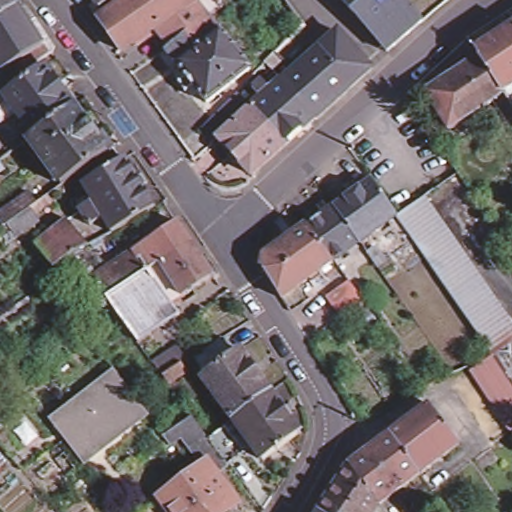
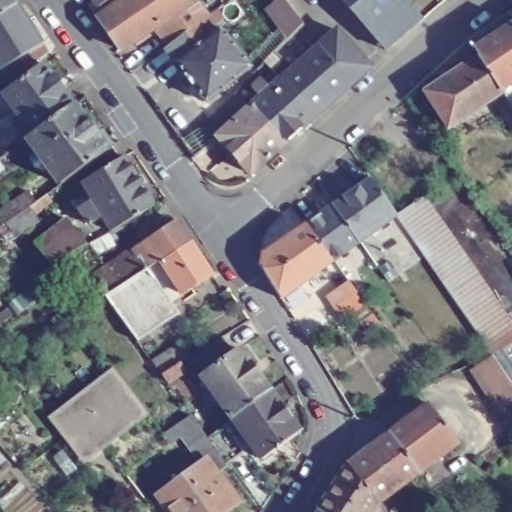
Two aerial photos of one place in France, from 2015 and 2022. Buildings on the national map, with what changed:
unchanged [(0,0),(6,0),(0,3),(0,0)]
unchanged [(0,64),(0,3),(6,0),(12,0),(41,46),(5,72),(0,64)]
unchanged [(96,0),(95,1),(95,0),(96,0)]
unchanged [(115,44),(95,13),(112,0),(180,0),(150,21),(115,44)]
unchanged [(240,75),(198,105),(188,91),(178,97),(169,83),(178,77),(170,66),(157,47),(163,42),(150,21),(180,0),(202,0),(209,11),(219,26),(210,32),(240,75)]
unchanged [(387,49),(360,13),(349,11),(348,11),(340,0),(399,0),(417,23),(387,49)]
unchanged [(282,44),(286,49),(257,78),(249,70),(262,56),(254,47),(276,25),(296,4),(304,13),(293,24),(297,29),(282,44)]
unchanged [(473,53),(470,46),(512,18),(512,110),(473,53)]
unchanged [(249,99),(335,24),(364,65),(308,113),(281,137),(249,99)]
unchanged [(490,99),(442,127),(417,88),(473,53),(512,110),(512,132),(490,99)]
unchanged [(38,57),(68,97),(30,125),(7,91),(0,97),(0,85),(2,84),(38,57)]
unchanged [(212,106),(235,83),(242,91),(220,114),(205,130),(198,121),(212,106)]
unchanged [(83,119),(89,117),(95,124),(92,131),(102,144),(56,178),(23,130),(30,125),(68,97),(83,119)]
unchanged [(245,168),(213,130),(249,99),(281,137),(245,168)]
unchanged [(15,136),(11,139),(0,147),(0,126),(6,122),(15,136)]
unchanged [(113,225),(105,210),(91,217),(80,198),(93,191),(84,175),(127,151),(156,202),(113,225)]
unchanged [(305,226),(311,221),(336,204),(338,203),(375,177),(400,210),(402,213),(397,216),(363,239),(361,241),(337,257),(330,262),(285,293),(263,259),(264,254),(305,226)]
unchanged [(53,204),(37,215),(40,221),(16,238),(0,214),(0,210),(29,190),(36,199),(46,193),(53,204)]
unchanged [(425,198),(512,329),(512,345),(495,357),(397,216),(402,213),(425,198)]
unchanged [(170,292),(161,297),(171,312),(135,335),(101,290),(85,269),(68,246),(50,260),(31,235),(64,210),(85,238),(87,236),(102,259),(133,239),(172,215),(186,236),(207,269),(170,292)]
unchanged [(336,306),(327,293),(350,276),(360,289),(369,302),(345,319),(336,306)]
unchanged [(201,378),(203,376),(190,358),(180,365),(169,348),(190,334),(201,351),(222,337),(235,353),(241,349),(270,389),(229,418),(201,378)]
unchanged [(473,372),(495,357),(512,383),(512,431),(473,372)]
unchanged [(151,413),(85,463),(50,415),(115,367),(151,413)]
unchanged [(300,432),(258,462),(240,434),(233,439),(240,449),(228,457),(211,434),(231,420),(229,418),(270,389),(300,432)]
unchanged [(421,481),(387,433),(425,407),(427,406),(461,453),(459,455),(421,481)]
unchanged [(185,432),(173,441),(166,432),(167,431),(179,423),(185,432)]
unchanged [(221,467),(242,497),(222,512),(181,512),(164,489),(203,459),(193,444),(201,438),(210,432),(211,434),(228,457),(230,460),(221,467)]
unchanged [(387,433),(421,481),(377,511),(342,464),(387,433)]
unchanged [(377,511),(376,512),(326,512),(317,499),(342,464),(377,511)]
unchanged [(326,512),(308,512),(317,499),(326,512)]

